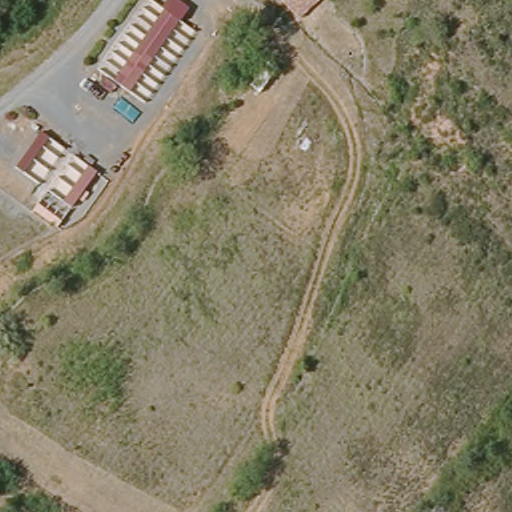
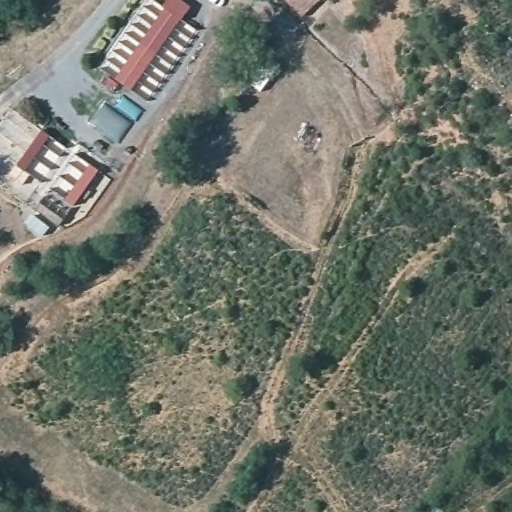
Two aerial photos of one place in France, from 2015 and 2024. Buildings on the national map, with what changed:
unchanged [(147,0),(151,0),(167,10),(174,0),(178,0),(188,7),(180,21),(195,33),(147,106),(115,83),(117,80),(97,69),(147,0)]
unchanged [(305,13),(289,0),(315,0),(305,13)]
unchanged [(98,170),(72,208),(22,172),(47,137),(98,170)]

